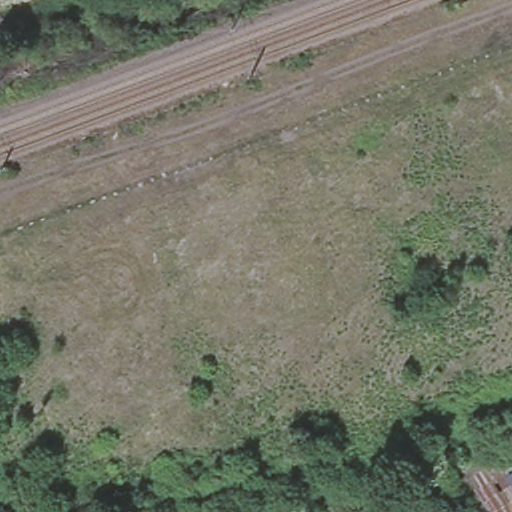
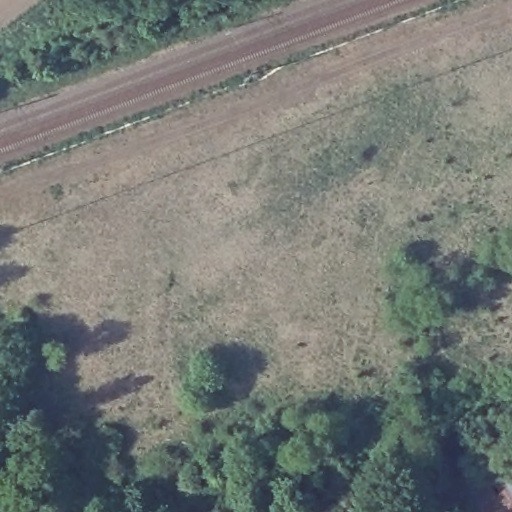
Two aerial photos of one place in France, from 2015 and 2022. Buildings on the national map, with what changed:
unchanged [(486,455),(506,450),(512,461),(512,512),(473,512),(451,477),(486,455)]

